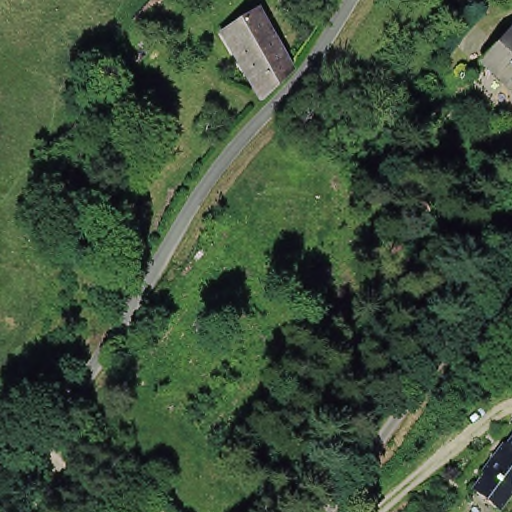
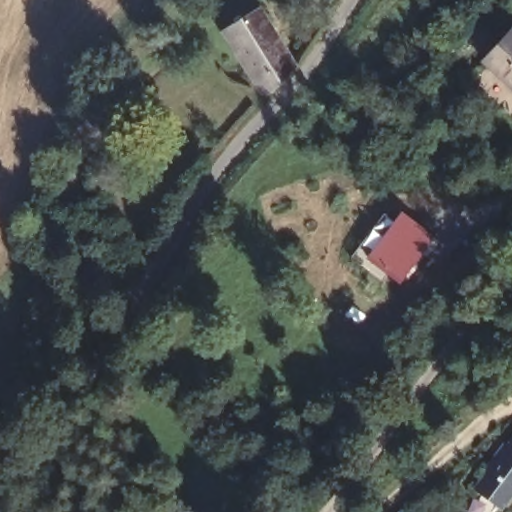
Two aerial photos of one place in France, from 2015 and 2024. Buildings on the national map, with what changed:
unchanged [(296,66),(260,95),(220,32),(256,7),(296,66)]
unchanged [(483,60),(512,29),(512,87),(483,60)]
new [(403,213),(433,235),(432,237),(438,241),(426,257),(420,253),(398,282),(368,259),(403,213)]
unchanged [(508,512),(481,491),(490,479),(487,477),(502,456),(505,457),(512,448),(512,507),(508,512)]

